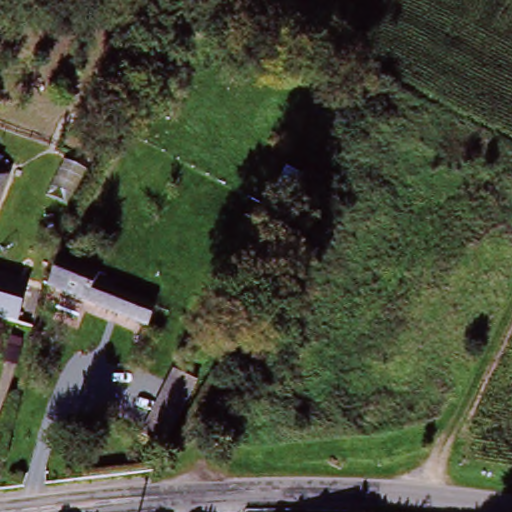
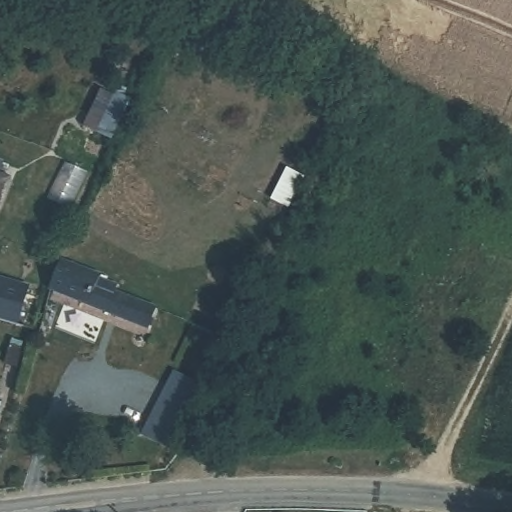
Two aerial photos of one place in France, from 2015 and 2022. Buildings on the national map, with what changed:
unchanged [(6,177),(0,199),(0,175),(6,177)]
unchanged [(113,280),(109,287),(154,306),(142,327),(56,289),(67,262),(113,280)]
unchanged [(28,289),(17,325),(0,320),(0,280),(28,289)]
unchanged [(210,369),(179,431),(155,420),(185,357),(210,369)]

